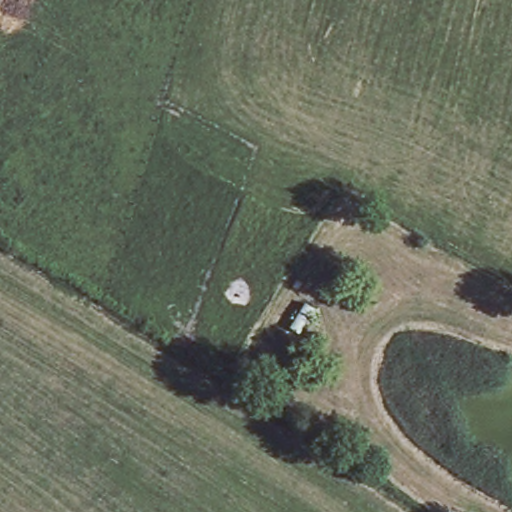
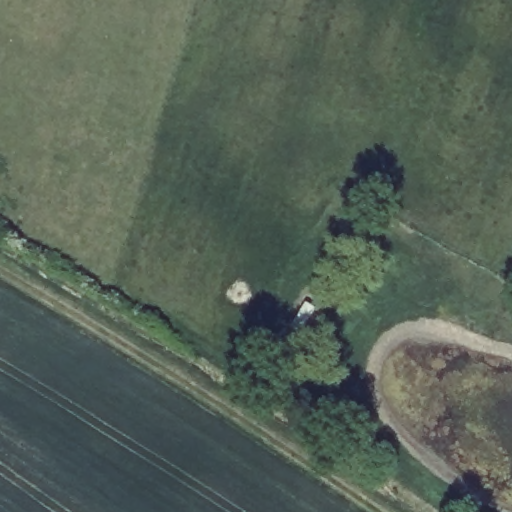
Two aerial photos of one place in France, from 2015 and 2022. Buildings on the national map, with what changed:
unchanged [(305,302),(320,312),(300,334),(285,325),(305,302)]

